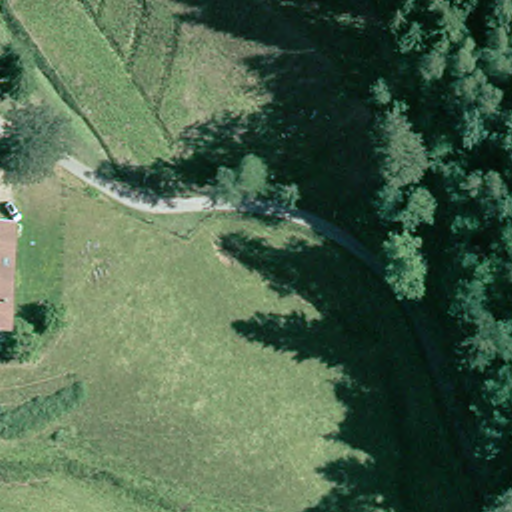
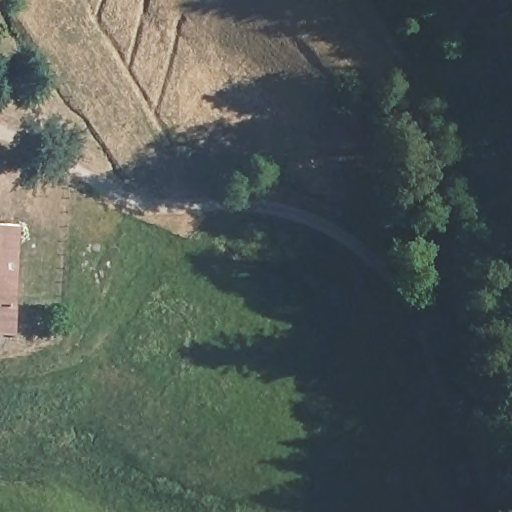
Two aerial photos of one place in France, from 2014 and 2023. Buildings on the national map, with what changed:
unchanged [(0,334),(0,226),(18,226),(18,254),(17,334),(0,334)]

